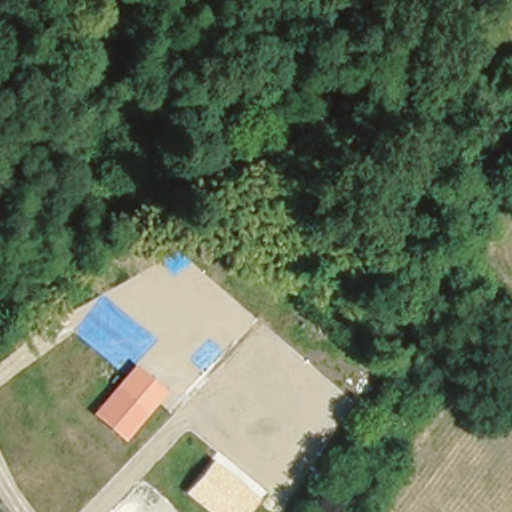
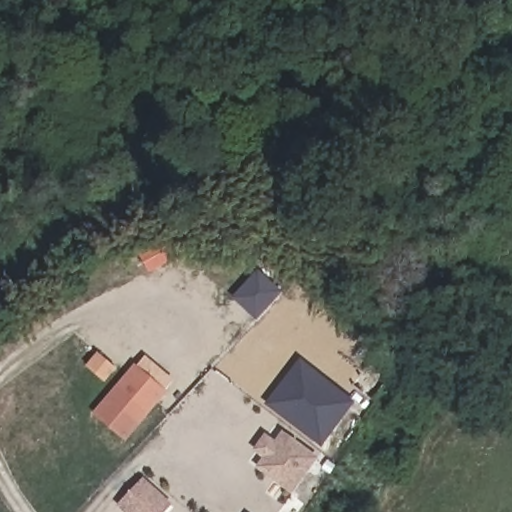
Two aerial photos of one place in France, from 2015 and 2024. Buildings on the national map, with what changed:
new [(320,443),(266,402),(300,359),(352,402),(320,443)]
new [(117,381),(133,363),(167,390),(152,410),(117,381)]
unchanged [(152,410),(125,441),(91,412),(117,381),(152,410)]
new [(282,430),(319,457),(290,495),(255,467),(263,457),(252,449),(264,433),(275,441),(282,430)]
demolished [(259,496),(245,512),(209,512),(184,491),(209,456),(259,496)]
new [(163,512),(125,512),(117,504),(142,477),(171,504),(163,512)]

